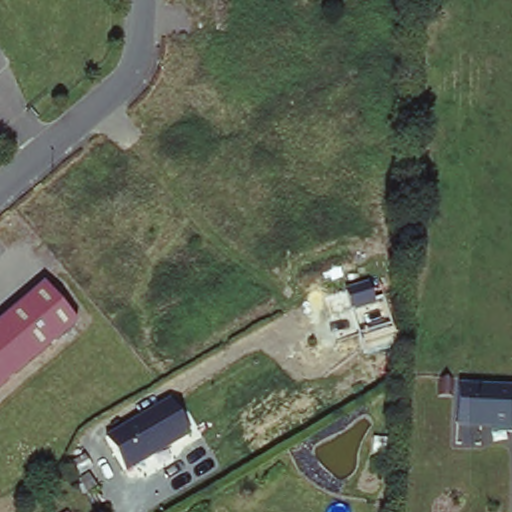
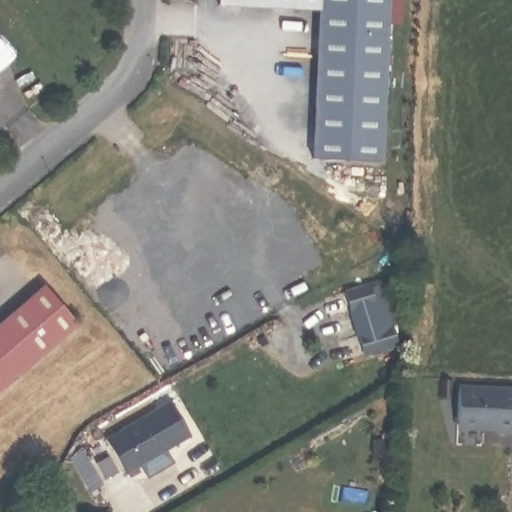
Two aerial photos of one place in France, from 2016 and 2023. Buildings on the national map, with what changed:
new [(381,160),(314,159),(319,9),(218,5),(218,0),(387,0),(381,160)]
new [(369,282),(375,300),(384,298),(397,340),(364,351),(346,288),(369,282)]
unchanged [(0,322),(44,285),(77,323),(0,391),(0,322)]
unchanged [(457,431),(457,386),(512,389),(512,433),(457,431)]
unchanged [(126,475),(103,438),(168,401),(189,436),(126,475)]

